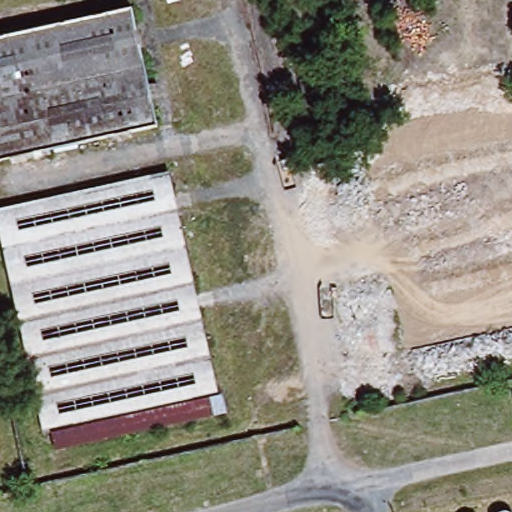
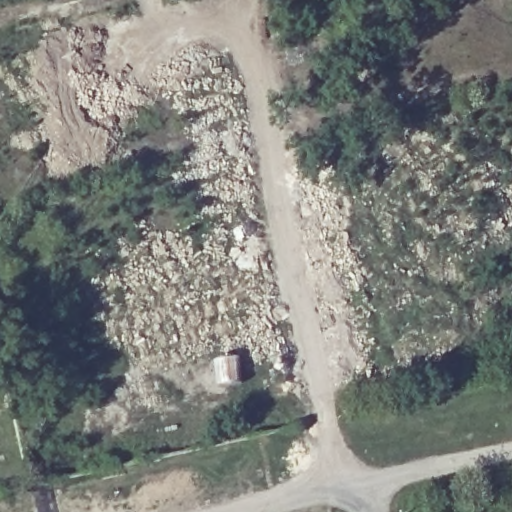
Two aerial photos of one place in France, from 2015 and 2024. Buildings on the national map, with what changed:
demolished [(0,159),(0,38),(129,9),(155,125),(0,159)]
demolished [(407,355),(360,132),(512,95),(512,330),(407,355)]
demolished [(220,408),(48,445),(0,223),(171,184),(220,408)]

